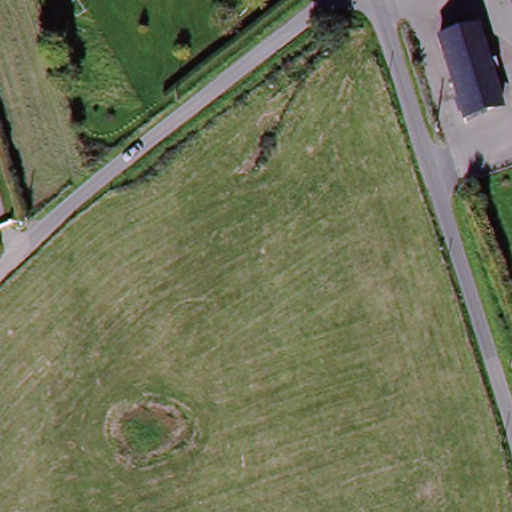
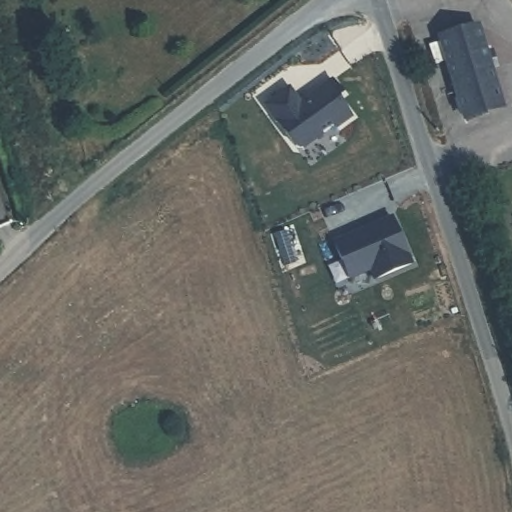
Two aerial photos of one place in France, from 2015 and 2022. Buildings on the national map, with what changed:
unchanged [(500,58),(510,94),(505,95),(507,104),(470,115),(450,51),(447,44),(485,32),(487,40),(493,60),(500,58)]
new [(293,90),(305,107),(340,83),(350,97),(344,101),(358,122),(343,132),(341,130),(306,153),(298,151),(268,107),(293,90)]
new [(397,214),(417,261),(379,277),(375,268),(353,277),(337,239),(397,214)]

